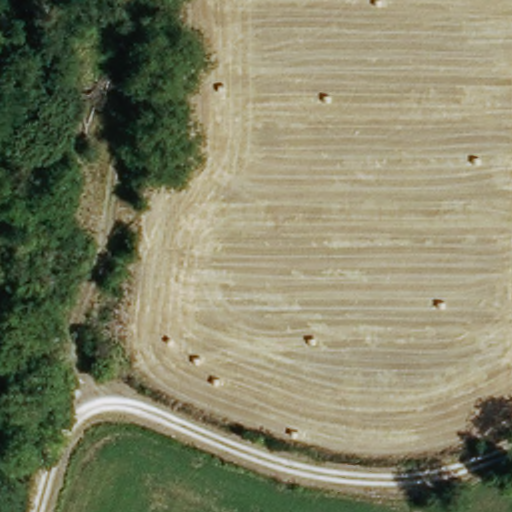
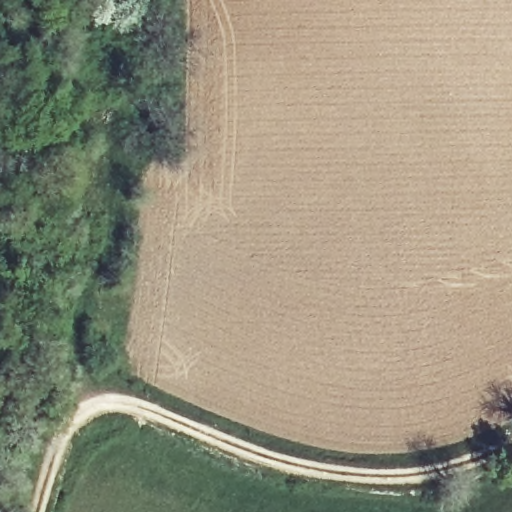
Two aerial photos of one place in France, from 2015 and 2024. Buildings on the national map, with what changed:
[]

